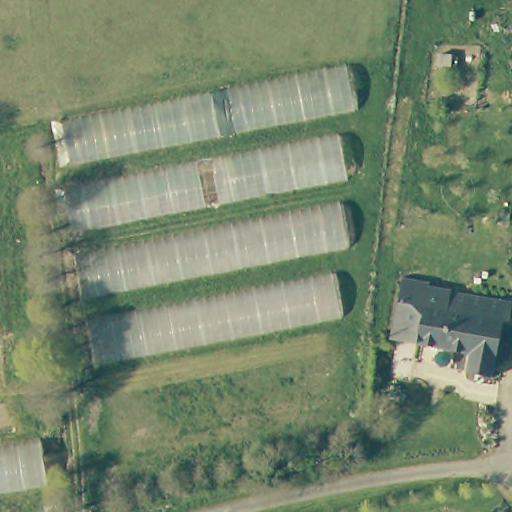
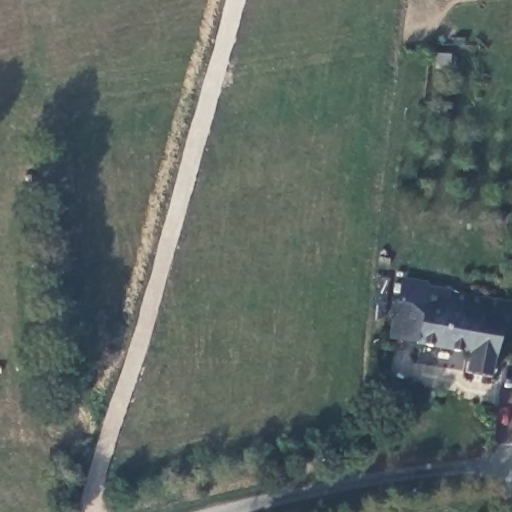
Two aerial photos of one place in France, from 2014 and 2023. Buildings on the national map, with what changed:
demolished [(343,70),(350,115),(65,167),(58,129),(343,70)]
demolished [(337,142),(346,180),(68,237),(62,197),(337,142)]
demolished [(340,209),(347,251),(78,302),(73,260),(340,209)]
demolished [(330,279),(337,318),(88,366),(77,329),(330,279)]
unchanged [(465,358),(412,349),(412,348),(386,343),(393,306),(397,287),(443,295),(443,296),(497,306),(497,307),(506,309),(502,326),(497,325),(487,382),(462,378),(465,358)]
demolished [(2,401),(0,401),(0,381),(2,401)]
demolished [(42,490),(0,497),(0,453),(35,446),(42,490)]

